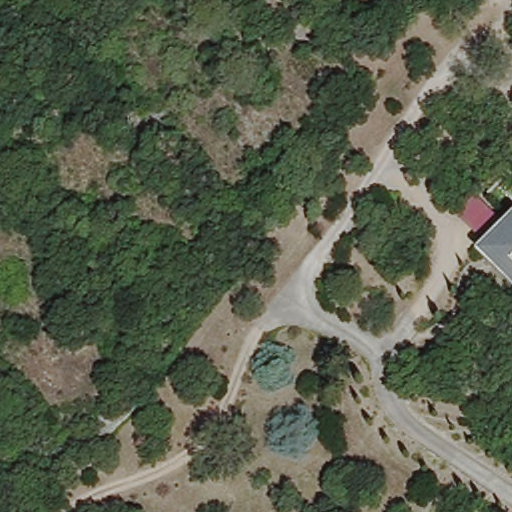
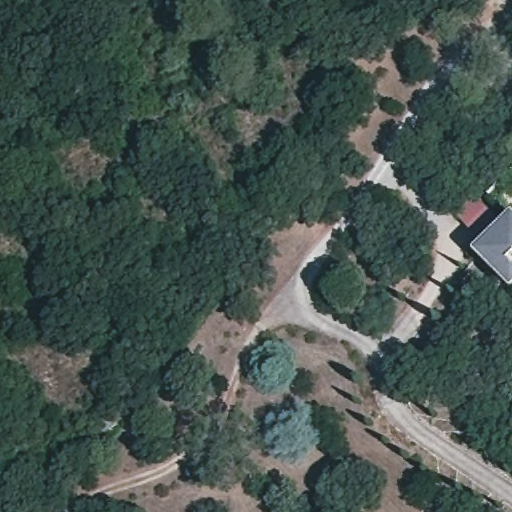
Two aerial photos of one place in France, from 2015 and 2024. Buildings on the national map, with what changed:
unchanged [(512,223),(512,280),(484,252),(512,223)]

